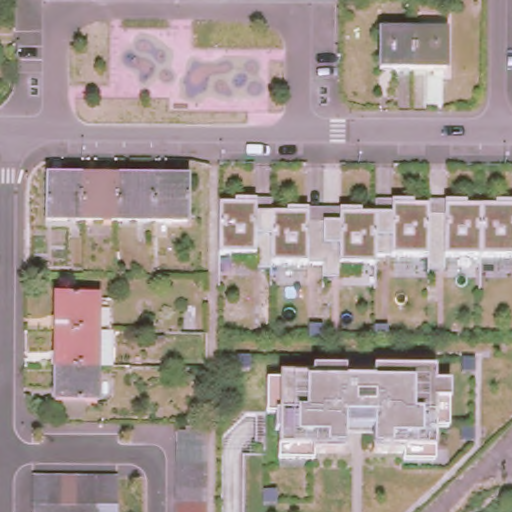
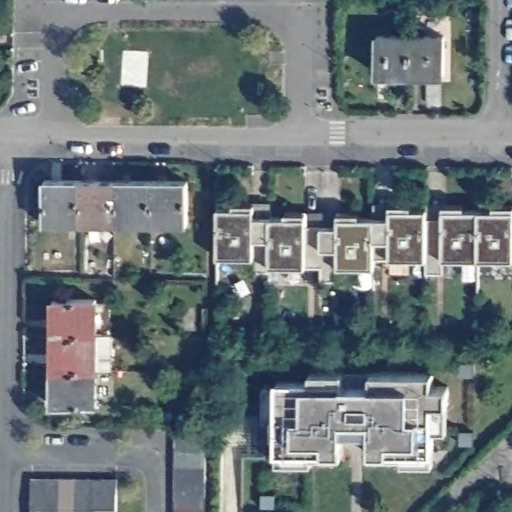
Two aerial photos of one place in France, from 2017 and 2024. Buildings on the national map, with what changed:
unchanged [(380,33),(412,33),(412,73),(379,73),(380,33)]
unchanged [(446,33),(445,73),(412,73),(412,33),(446,33)]
unchanged [(49,217),(50,175),(85,175),(85,218),(49,217)]
unchanged [(85,175),(120,176),(121,218),(85,218),(85,175)]
unchanged [(156,176),(156,218),(121,218),(120,176),(156,176)]
unchanged [(191,176),(191,218),(156,218),(156,176),(191,176)]
unchanged [(233,202),(273,203),(273,215),(375,216),(375,206),(512,206),(512,260),(444,260),(444,275),(426,275),(426,260),(374,260),(374,268),(339,267),(339,282),(321,282),(322,266),(270,265),(270,273),(253,273),(253,256),(218,254),(218,207),(233,206),(233,202)]
unchanged [(54,292),(97,293),(97,328),(54,328),(54,292)]
unchanged [(54,328),(97,328),(97,364),(54,364),(54,328)]
unchanged [(97,401),(54,400),(54,364),(97,364),(97,401)]
unchanged [(310,378),(310,370),(345,371),(346,382),(370,383),(370,372),(435,371),(434,385),(451,385),(450,434),(435,434),(434,466),(402,466),(402,453),(370,453),(370,420),(345,420),(345,452),(312,452),(312,464),(276,464),(275,420),(264,420),(265,386),(277,386),(277,378),(310,378)]
unchanged [(174,492),(174,479),(175,464),(175,450),(175,435),(205,436),(205,450),(205,464),(205,479),(205,492),(205,506),(205,512),(174,512),(174,506),(174,492)]
unchanged [(50,477),(64,477),(78,477),(92,477),(106,477),(120,477),(120,508),(119,512),(36,512),(36,507),(36,477),(50,477)]

